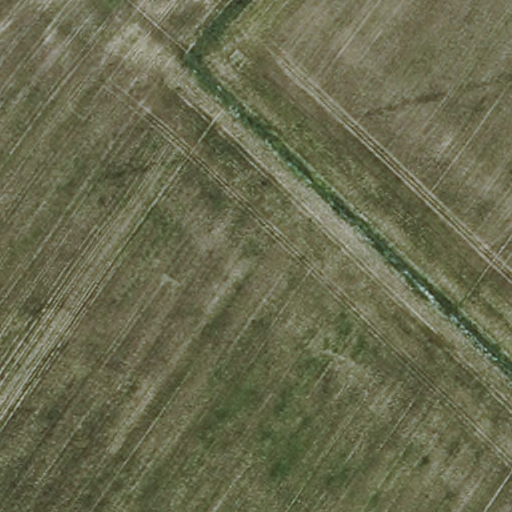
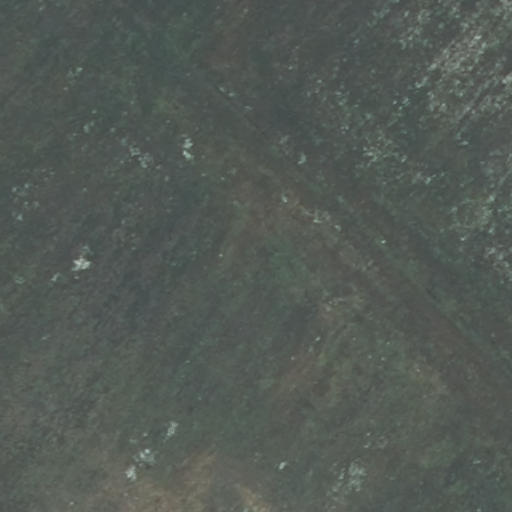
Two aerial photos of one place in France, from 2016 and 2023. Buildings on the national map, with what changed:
[]

